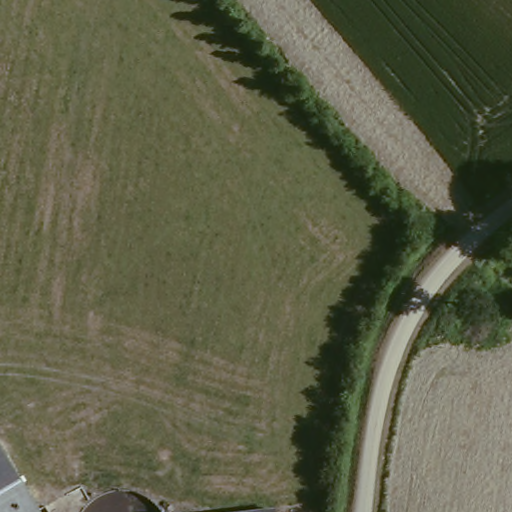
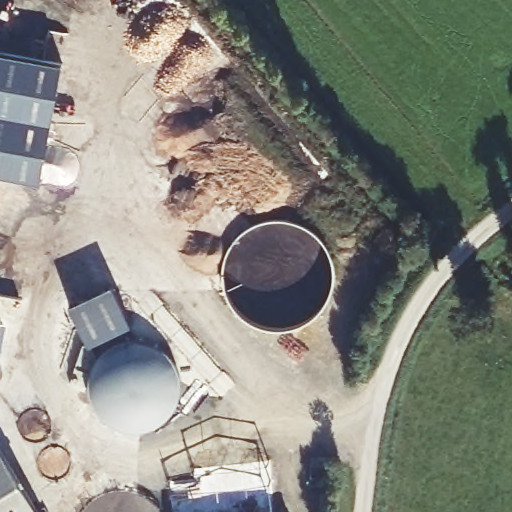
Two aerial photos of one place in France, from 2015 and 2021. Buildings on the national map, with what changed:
new [(62,61),(40,181),(0,174),(0,50),(62,61)]
new [(111,284),(131,325),(87,345),(69,305),(111,284)]
unchanged [(36,512),(0,512),(0,450),(4,448),(36,512)]

